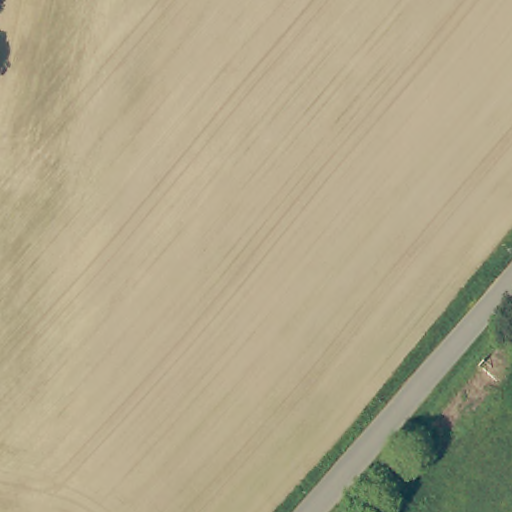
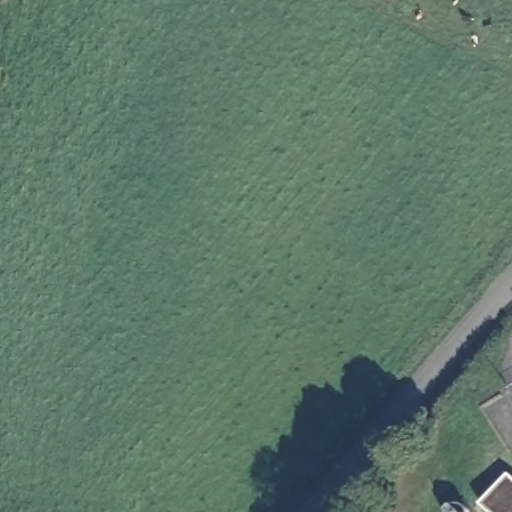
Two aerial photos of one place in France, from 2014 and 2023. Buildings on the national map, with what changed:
new [(512,478),(512,512),(489,512),(481,505),(510,476),(512,478)]

